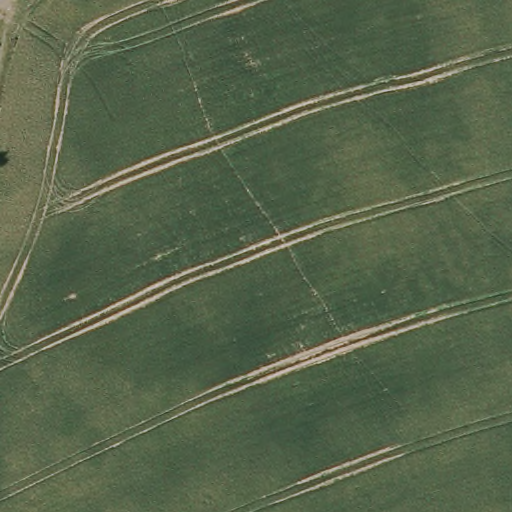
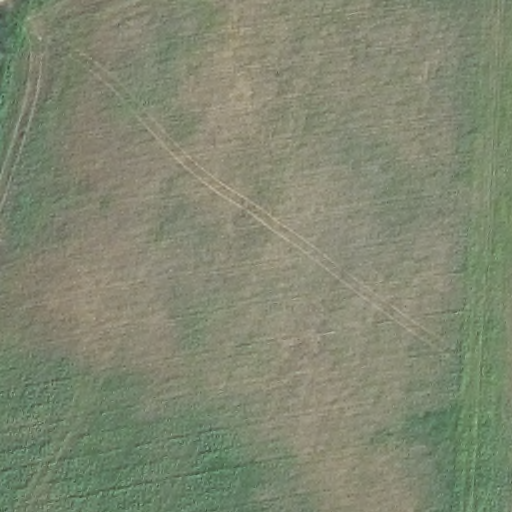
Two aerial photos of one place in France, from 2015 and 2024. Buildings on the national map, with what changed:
[]

